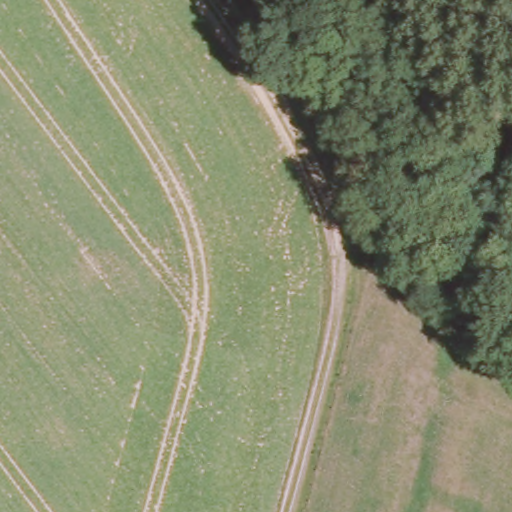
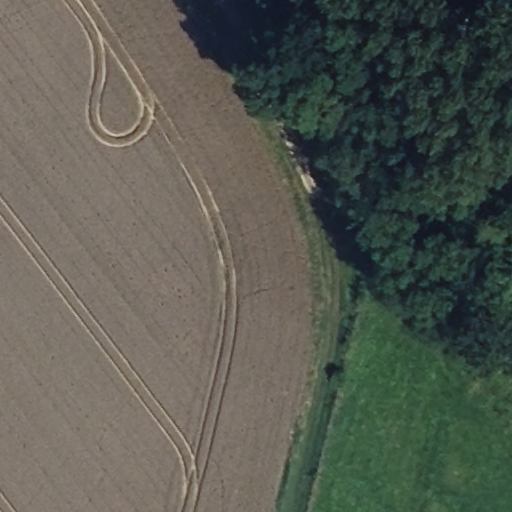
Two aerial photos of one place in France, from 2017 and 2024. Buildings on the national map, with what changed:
unchanged [(507,131),(512,132),(512,181),(494,176),(507,131)]

